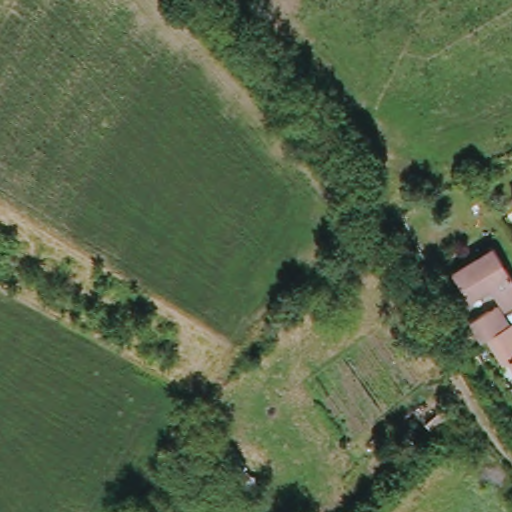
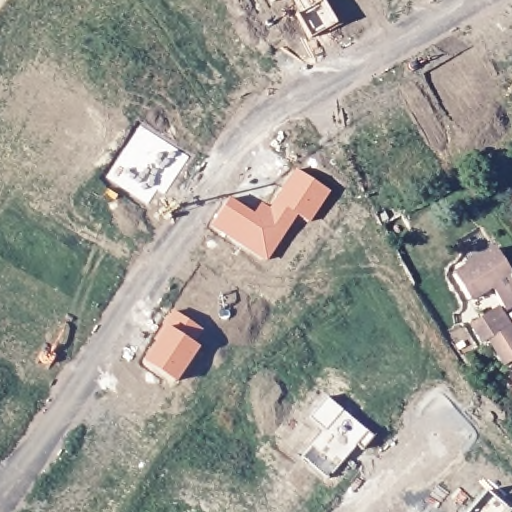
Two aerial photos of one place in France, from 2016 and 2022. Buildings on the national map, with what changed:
new [(269,261),(210,228),(231,196),(256,211),(262,201),(272,206),(297,167),(332,191),(310,222),(299,215),(269,261)]
unchanged [(512,303),(504,309),(490,287),(470,299),(455,275),(495,250),(512,276),(512,303)]
unchanged [(490,338),(485,341),(474,322),(497,307),(509,326),(512,324),(512,360),(507,363),(490,338)]
new [(175,311),(207,329),(197,344),(202,348),(178,382),(144,359),(175,311)]

